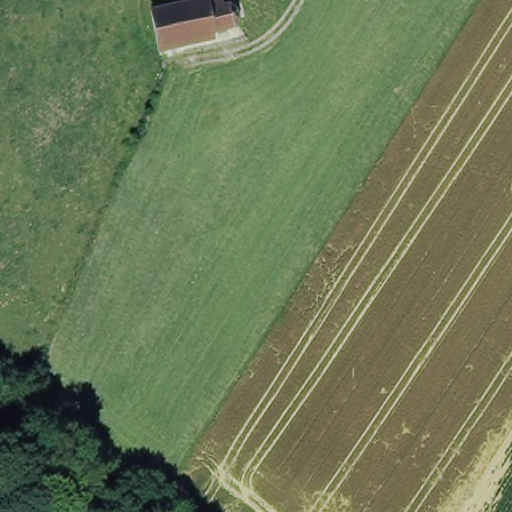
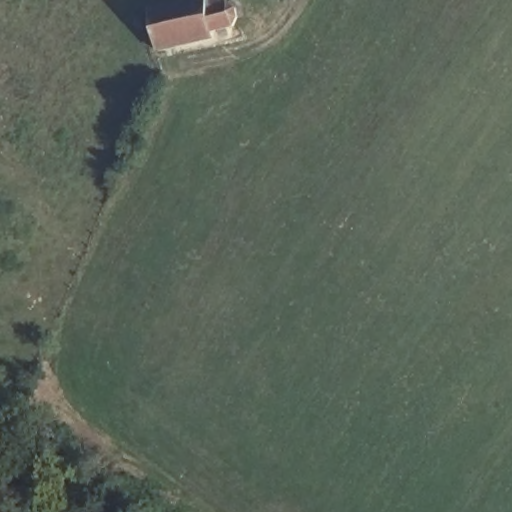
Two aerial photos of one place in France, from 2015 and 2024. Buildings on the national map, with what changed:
unchanged [(209,32),(210,40),(155,53),(147,11),(191,0),(215,0),(219,9),(222,8),(222,6),(225,5),(233,9),(235,19),(227,28),(209,32)]

